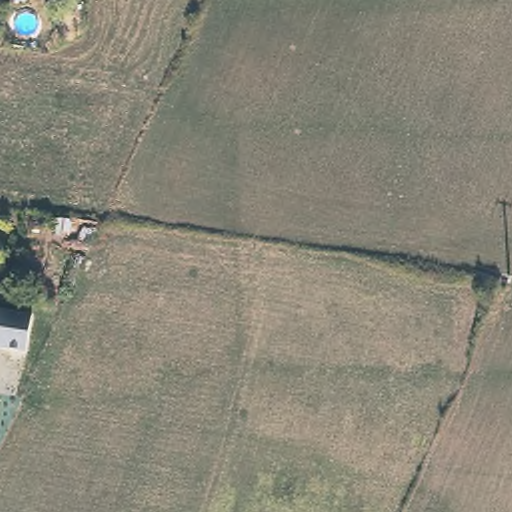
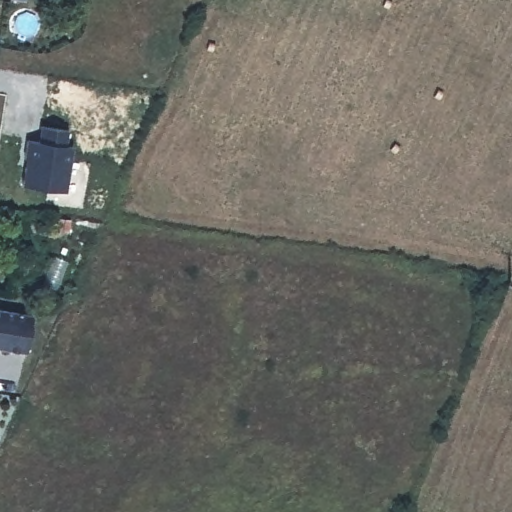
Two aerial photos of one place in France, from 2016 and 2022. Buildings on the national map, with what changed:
new [(28,160),(25,160),(28,140),(39,141),(41,126),(69,130),(67,145),(73,146),(67,191),(24,185),(28,160)]
unchanged [(32,316),(27,353),(0,350),(0,311),(32,316)]

